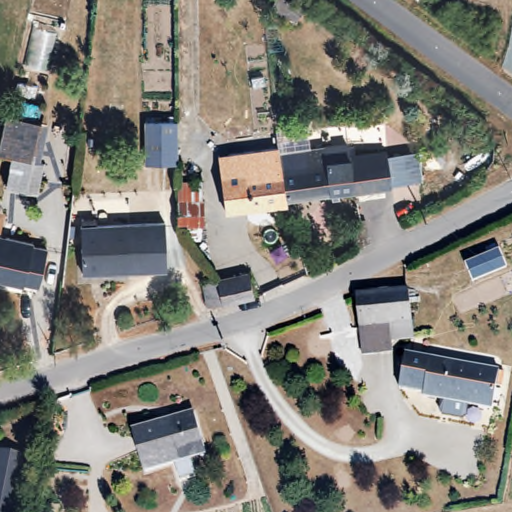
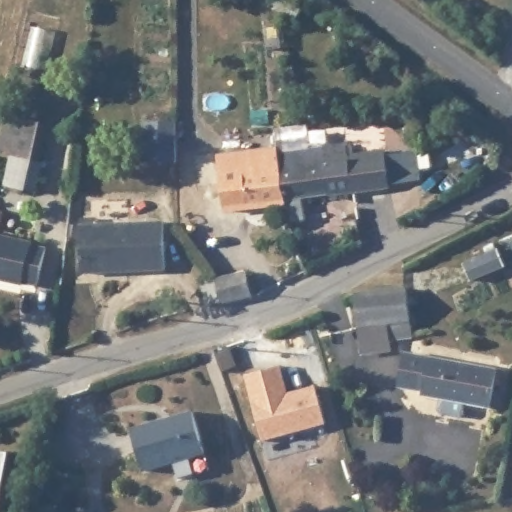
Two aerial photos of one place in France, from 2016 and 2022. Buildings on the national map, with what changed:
unchanged [(40,120),(31,159),(42,161),(35,192),(5,185),(11,156),(0,153),(0,145),(2,135),(7,112),(40,120)]
unchanged [(173,125),(173,167),(141,169),(142,126),(173,125)]
unchanged [(220,177),(229,175),(225,155),(233,154),(264,149),(265,154),(274,152),(294,149),(320,145),(321,149),(329,195),(309,199),(310,212),(296,214),(294,201),(288,202),(248,209),(226,212),(222,184),(220,177)]
unchanged [(349,146),(351,162),(388,158),(388,159),(389,174),(391,188),(391,189),(329,195),(321,149),(349,146)]
unchanged [(178,223),(178,182),(201,182),(200,223),(178,223)]
demolished [(373,218),(376,240),(375,240),(351,246),(347,222),(373,218)]
unchanged [(155,222),(160,270),(84,273),(80,227),(155,222)]
unchanged [(30,245),(29,249),(45,252),(36,286),(22,283),(20,288),(0,283),(0,239),(30,245)]
unchanged [(496,250),(503,266),(468,281),(461,265),(496,250)]
unchanged [(218,280),(248,273),(253,296),(221,302),(206,306),(201,285),(218,280)]
unchanged [(406,288),(409,288),(413,337),(389,340),(389,345),(359,348),(357,327),(355,314),(355,293),(406,288)]
unchanged [(440,413),(443,396),(418,391),(418,387),(393,383),(399,350),(493,365),(488,404),(470,401),(468,418),(440,413)]
new [(244,375),(280,366),(288,393),(314,386),(325,425),(262,442),(244,375)]
unchanged [(192,413),(204,453),(189,458),(193,474),(176,478),(172,465),(142,473),(130,432),(192,413)]
unchanged [(7,512),(0,512),(0,458),(18,461),(7,512)]

